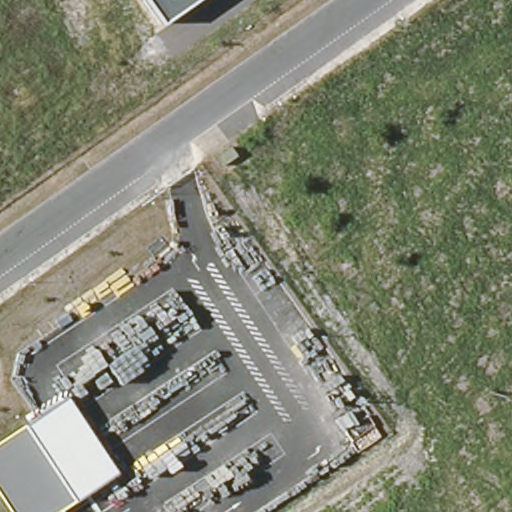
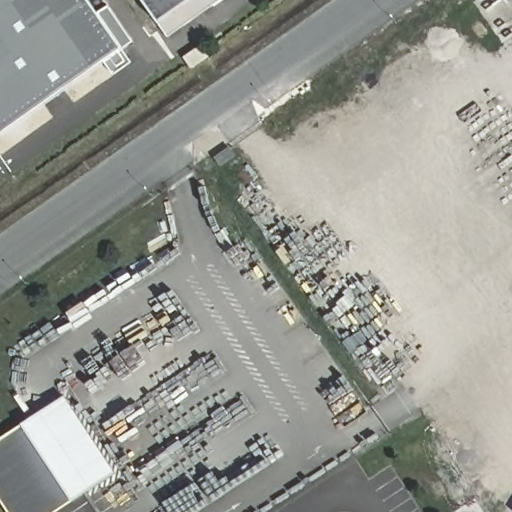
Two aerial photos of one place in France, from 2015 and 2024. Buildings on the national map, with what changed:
new [(0,136),(0,0),(91,0),(127,50),(0,136)]
unchanged [(138,0),(193,0),(156,26),(138,0)]
new [(193,68),(186,58),(203,45),(210,55),(193,68)]
unchanged [(71,502),(56,512),(9,512),(0,498),(0,440),(23,425),(28,425),(66,398),(116,471),(75,498),(71,502)]

